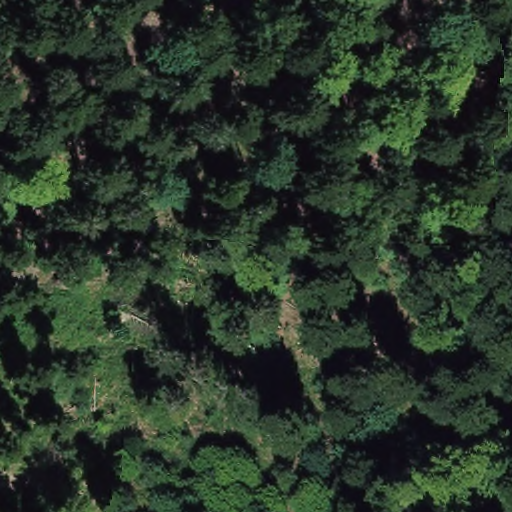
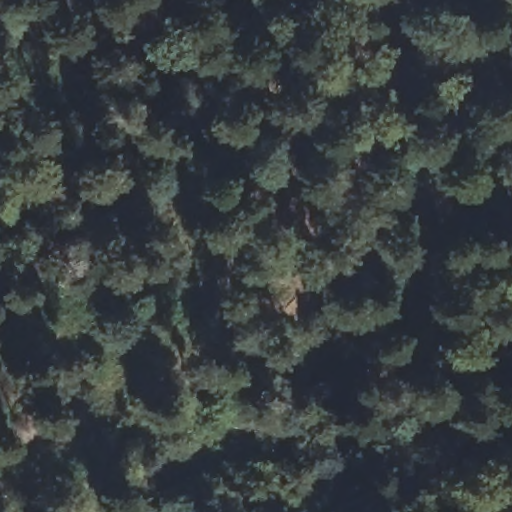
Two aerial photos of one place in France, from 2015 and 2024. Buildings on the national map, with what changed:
[]

